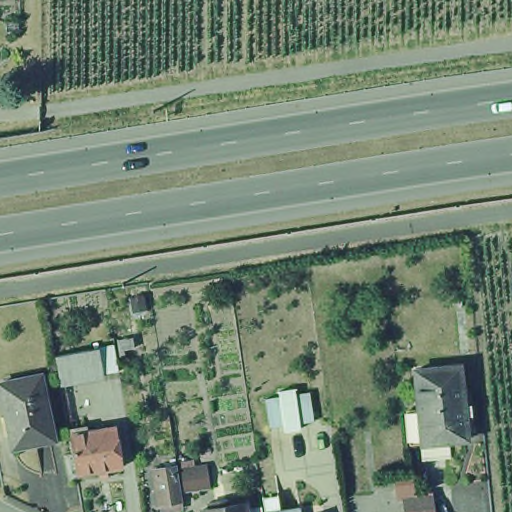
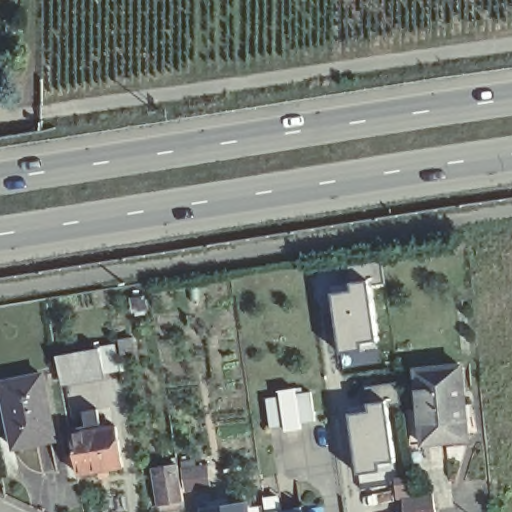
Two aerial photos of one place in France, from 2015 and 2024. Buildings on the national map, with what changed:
new [(333,294),(352,292),(351,283),(369,280),(378,340),(361,343),(363,352),(341,354),(333,294)]
unchanged [(56,361),(72,358),(98,353),(103,377),(76,382),(60,385),(56,361)]
unchanged [(461,444),(416,448),(408,376),(454,371),(461,444)]
unchanged [(54,443),(13,451),(0,389),(40,381),(54,443)]
unchanged [(279,399),(278,390),(296,387),(296,393),(310,392),(313,426),(283,432),(282,428),(267,430),(264,401),(279,399)]
new [(369,413),(368,406),(385,402),(396,460),(380,462),(381,473),(360,476),(349,417),(369,413)]
unchanged [(117,477),(73,484),(64,438),(79,435),(82,441),(111,436),(117,477)]
unchanged [(199,462),(203,489),(185,491),(181,465),(199,462)]
unchanged [(159,504),(156,486),(154,468),(176,465),(179,483),(182,500),(159,504)]
unchanged [(404,498),(402,485),(413,483),(414,483),(416,496),(432,494),(434,510),(434,512),(406,512),(404,498)]
unchanged [(238,512),(194,512),(194,510),(236,503),(238,512)]
unchanged [(264,510),(300,506),(301,512),(264,512),(264,510)]

